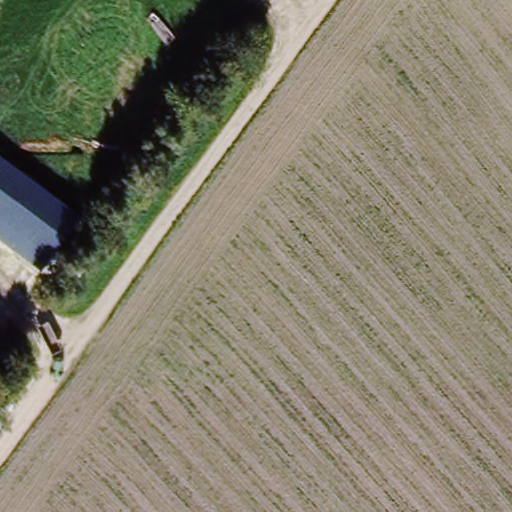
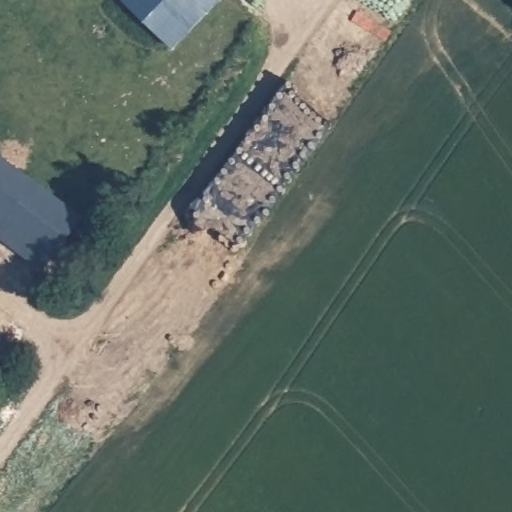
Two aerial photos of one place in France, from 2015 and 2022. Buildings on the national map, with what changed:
new [(174,52),(120,0),(223,0),(174,52)]
unchanged [(83,216),(43,271),(0,239),(0,157),(83,216)]

